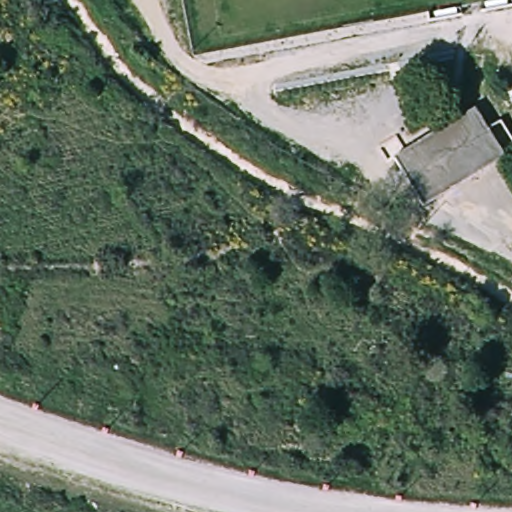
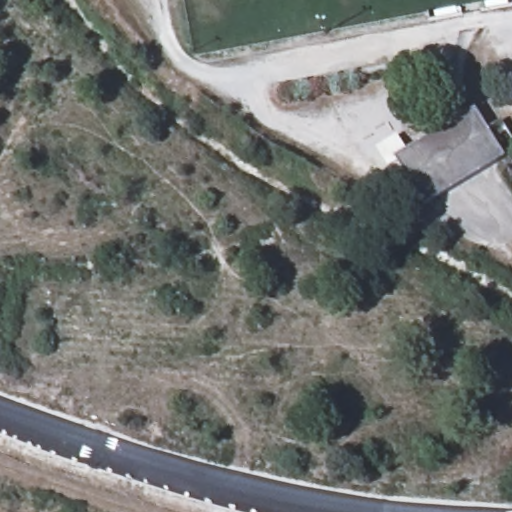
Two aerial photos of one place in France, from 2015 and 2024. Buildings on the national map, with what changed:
unchanged [(509,157),(427,206),(398,155),(478,106),(509,157)]

